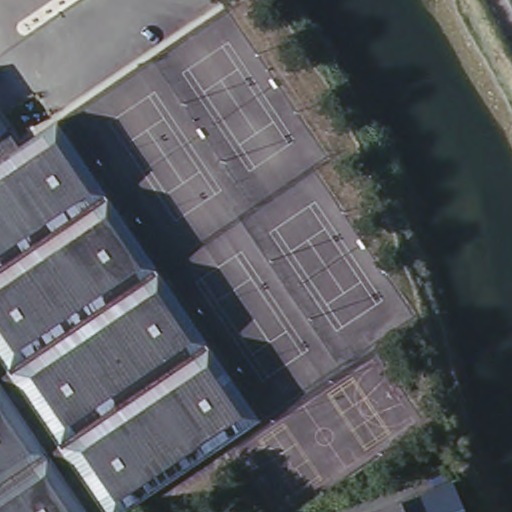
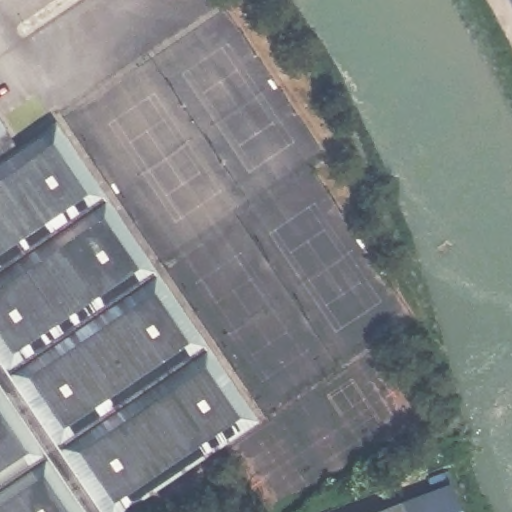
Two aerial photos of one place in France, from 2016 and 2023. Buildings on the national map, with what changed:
unchanged [(0,413),(0,106),(13,125),(10,127),(21,144),(62,117),(267,417),(127,512),(68,512),(0,413)]
unchanged [(0,413),(68,512),(0,512),(0,413)]
unchanged [(462,512),(364,512),(449,477),(462,512)]

